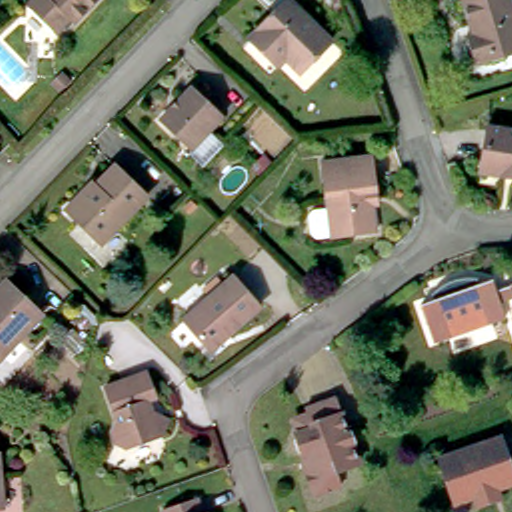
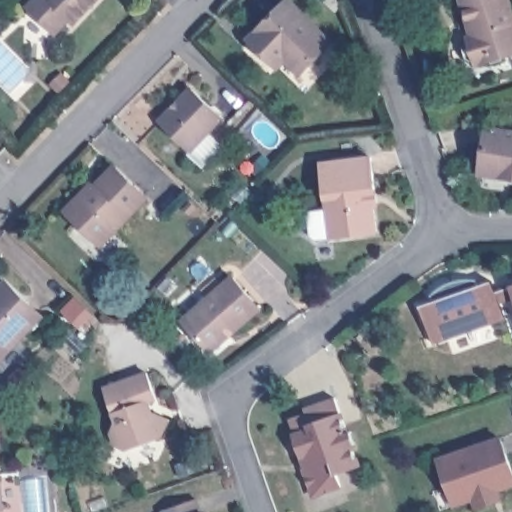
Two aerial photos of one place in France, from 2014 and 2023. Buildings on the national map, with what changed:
unchanged [(71,17),(57,32),(28,4),(31,0),(98,0),(77,22),(71,17)]
unchanged [(249,36),(286,0),(291,0),(332,41),(299,72),(286,57),(278,65),(271,57),(249,36)]
unchanged [(334,9),(325,0),(340,0),(342,2),(334,9)]
unchanged [(471,57),(466,44),(472,36),(478,34),(474,25),(467,0),(512,0),(512,1),(512,53),(510,54),(492,59),(481,62),(471,57)]
unchanged [(226,119),(193,152),(163,120),(194,88),(226,119)]
unchanged [(481,175),(477,167),(484,126),(512,131),(512,180),(507,179),(489,176),(481,175)]
unchanged [(329,231),(321,162),(371,156),(376,193),(378,206),(373,207),(376,234),(341,237),(330,239),(329,231)]
unchanged [(148,199),(103,245),(68,210),(85,192),(93,184),(97,188),(117,167),(148,199)]
unchanged [(499,301),(505,316),(503,317),(433,342),(419,306),(434,301),(431,294),(436,290),(441,286),(447,283),(452,280),(464,277),(470,277),(476,277),(478,284),(489,280),(492,279),(496,290),(511,285),(510,283),(512,282),(512,296),(499,301)]
unchanged [(233,280),(259,311),(209,352),(183,322),(233,280)]
unchanged [(29,326),(31,328),(0,360),(0,288),(7,281),(41,315),(29,326)]
unchanged [(509,312),(512,311),(512,321),(509,312)]
unchanged [(161,395),(152,397),(157,411),(172,417),(163,434),(129,446),(119,441),(115,429),(120,418),(109,384),(151,368),(161,395)]
unchanged [(336,398),(348,433),(353,432),(356,444),(353,446),(360,466),(338,472),(342,486),(315,496),(306,468),(309,467),(306,456),(299,454),(295,442),(298,435),(294,422),(309,417),(307,408),(336,398)]
unchanged [(474,505),(469,496),(452,502),(435,457),(495,435),(511,481),(492,487),(496,497),(474,505)]
unchanged [(196,493),(201,511),(206,509),(206,512),(164,512),(161,505),(196,493)]

